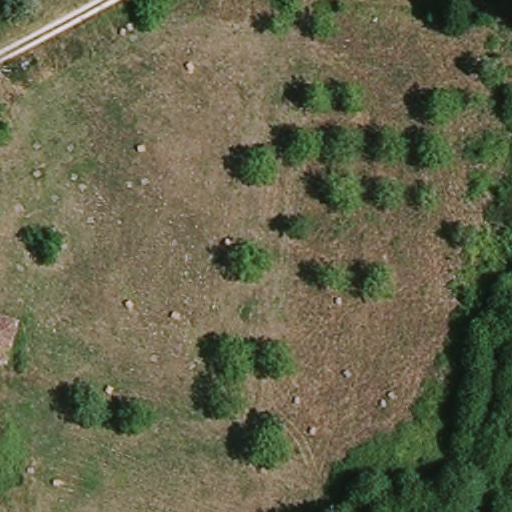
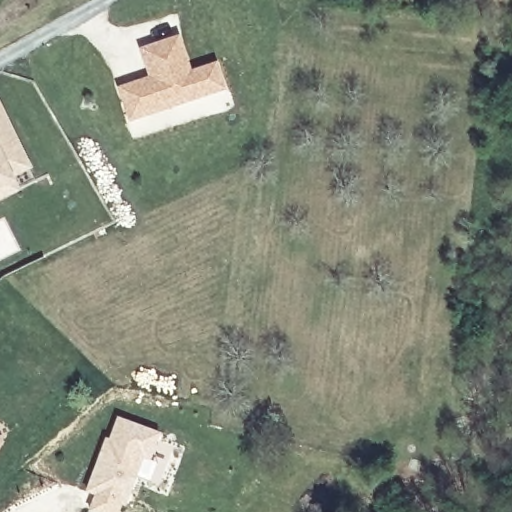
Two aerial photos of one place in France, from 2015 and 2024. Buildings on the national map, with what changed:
new [(128,123),(117,91),(148,80),(144,70),(138,51),(175,39),(187,75),(213,66),(221,91),(169,108),(146,116),(128,123)]
new [(8,179),(10,184),(14,193),(0,200),(0,116),(26,170),(8,179)]
demolished [(10,366),(0,363),(0,317),(21,323),(10,366)]
new [(143,460),(126,507),(120,505),(118,512),(91,512),(88,511),(94,495),(86,492),(105,439),(109,441),(118,419),(159,434),(149,461),(143,460)]
unchanged [(0,428),(7,433),(0,442),(0,428)]

